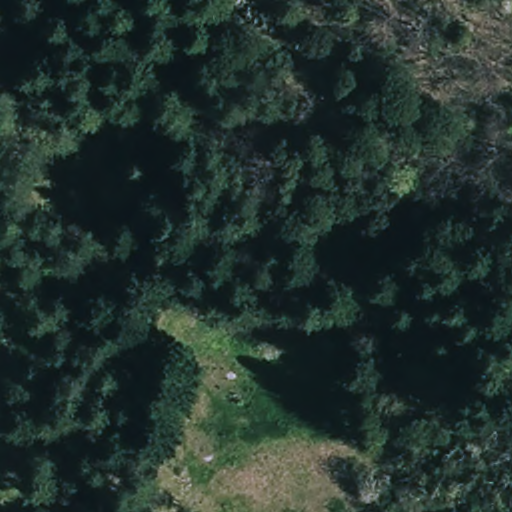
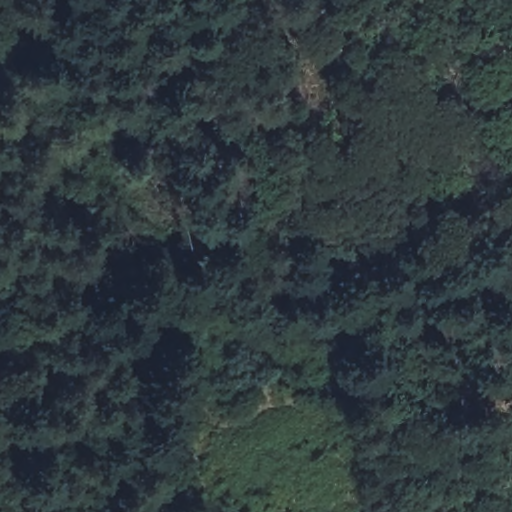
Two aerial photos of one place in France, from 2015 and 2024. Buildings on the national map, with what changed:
[]

